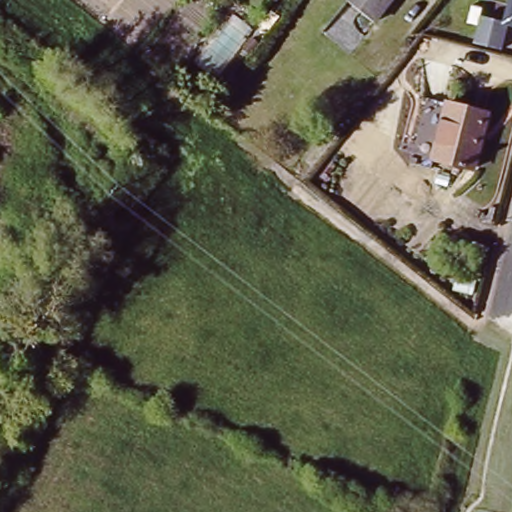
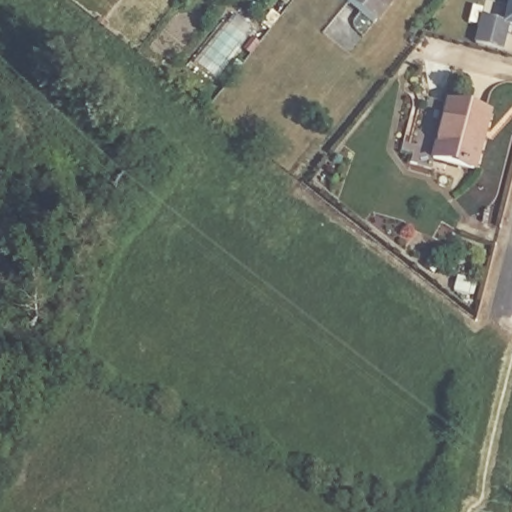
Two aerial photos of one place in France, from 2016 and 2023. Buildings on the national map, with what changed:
unchanged [(279,1),(277,0),(280,0),(279,1)]
unchanged [(375,20),(351,0),(392,0),(375,20)]
unchanged [(503,16),(508,0),(512,0),(512,19),(503,16)]
unchanged [(477,175),(427,167),(440,104),(490,114),(477,175)]

